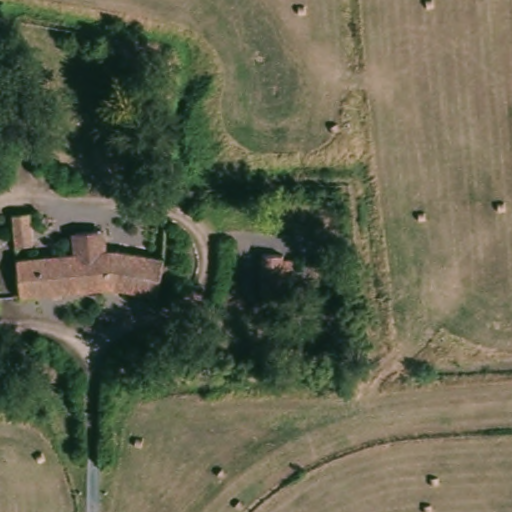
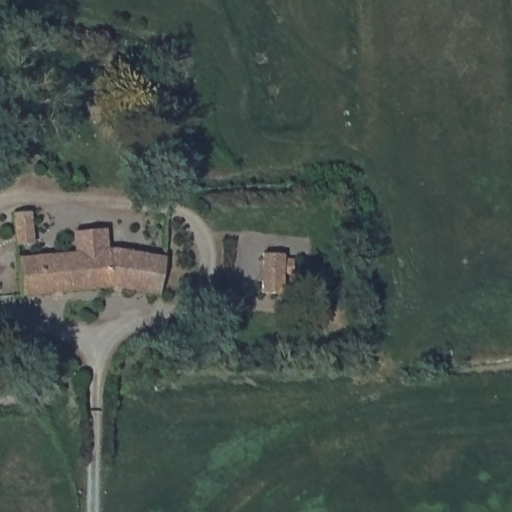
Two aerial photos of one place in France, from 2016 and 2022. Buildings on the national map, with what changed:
unchanged [(28,212),(31,242),(13,245),(9,214),(28,212)]
unchanged [(75,256),(73,229),(102,226),(104,248),(116,247),(166,252),(162,295),(115,290),(19,300),(15,262),(75,256)]
unchanged [(283,254),(285,300),(261,301),(259,255),(283,254)]

